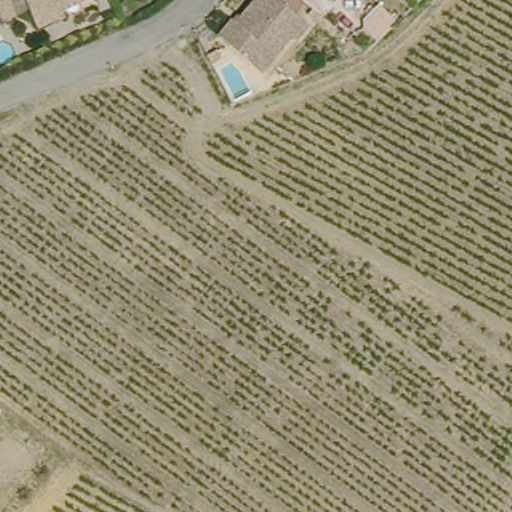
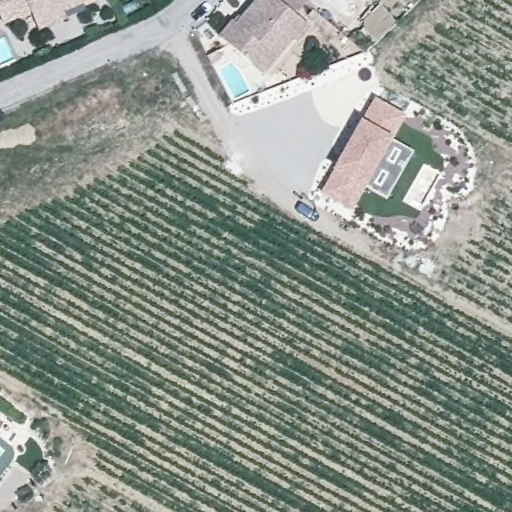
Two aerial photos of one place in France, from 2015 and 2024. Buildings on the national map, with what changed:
unchanged [(0,22),(0,0),(4,0),(11,18),(0,22)]
unchanged [(29,26),(25,14),(20,0),(91,0),(93,3),(76,9),(57,15),(60,23),(31,33),(29,26)]
unchanged [(220,39),(259,0),(289,0),(285,5),(318,35),(305,49),(299,44),(263,79),(220,39)]
unchanged [(217,44),(221,51),(212,57),(208,49),(217,44)]
new [(365,187),(351,211),(321,194),(334,170),(361,120),(376,98),(408,115),(394,140),(413,151),(389,199),(365,187)]

